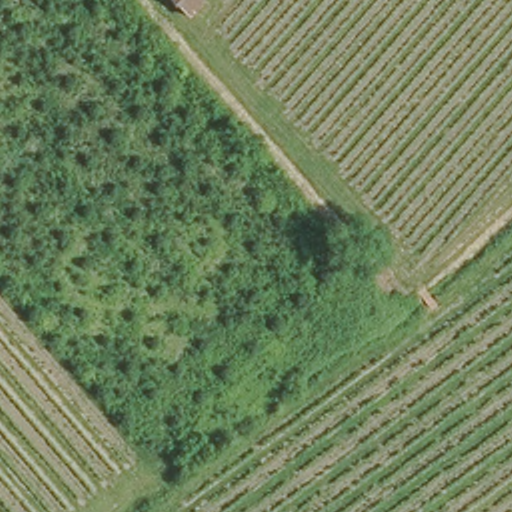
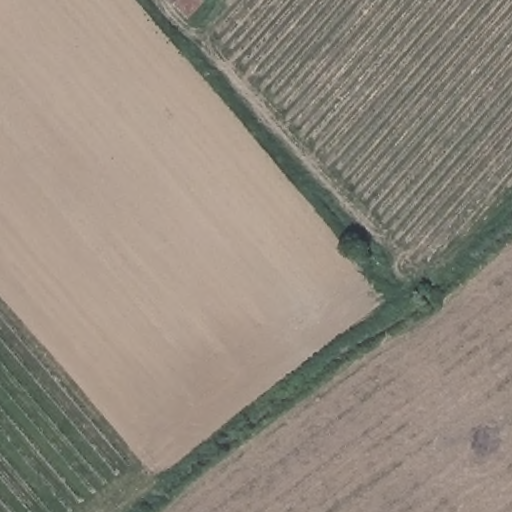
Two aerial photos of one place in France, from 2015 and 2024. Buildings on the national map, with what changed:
unchanged [(204,11),(186,27),(164,0),(195,0),(204,11)]

